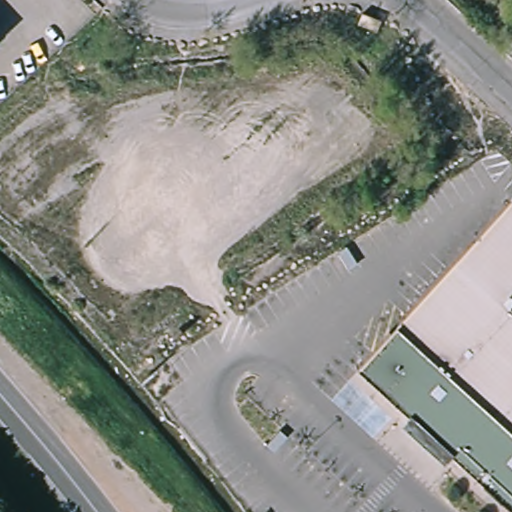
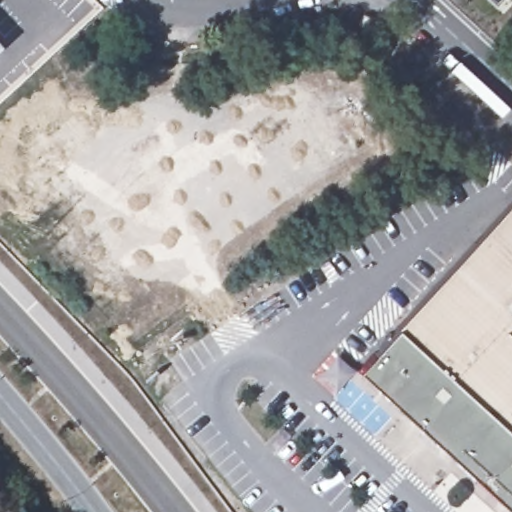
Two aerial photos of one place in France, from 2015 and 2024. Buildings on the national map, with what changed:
unchanged [(365,13),(380,20),(376,29),(360,22),(365,13)]
unchanged [(443,462),(401,423),(408,416),(358,370),(396,328),(395,328),(512,201),(512,510),(450,454),(443,462)]

